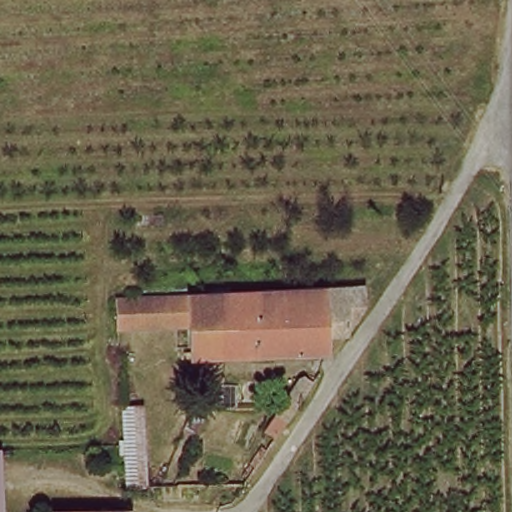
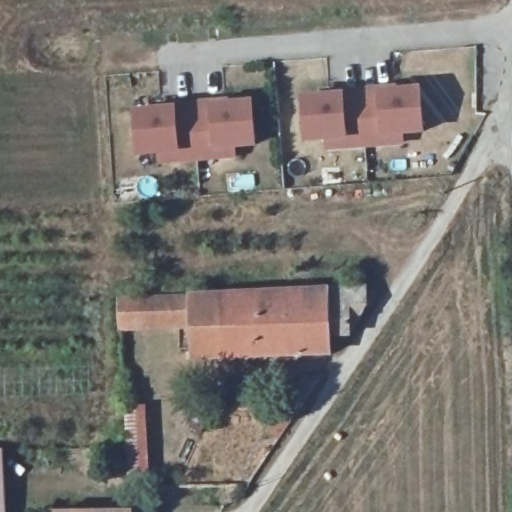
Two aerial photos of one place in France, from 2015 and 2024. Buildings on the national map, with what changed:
new [(325,94),(324,89),(401,84),(402,88),(421,87),(425,135),(403,137),(405,146),(327,154),(325,143),(303,145),(300,96),(325,94)]
new [(156,108),(155,103),(230,97),(230,101),(252,100),(258,148),(236,151),(238,159),(158,166),(157,156),(137,158),(132,111),(156,108)]
unchanged [(369,318),(357,336),(333,337),(333,355),(194,358),(194,325),(122,326),(122,296),(369,290),(369,318)]
unchanged [(278,451),(263,440),(300,387),(307,383),(319,391),(278,451)]
unchanged [(145,411),(148,488),(127,488),(126,443),(125,412),(145,411)]
unchanged [(187,416),(202,425),(195,441),(176,432),(187,416)]
unchanged [(0,451),(1,451),(3,512),(0,512),(0,451)]
unchanged [(60,510),(132,509),(133,512),(59,512),(60,510)]

